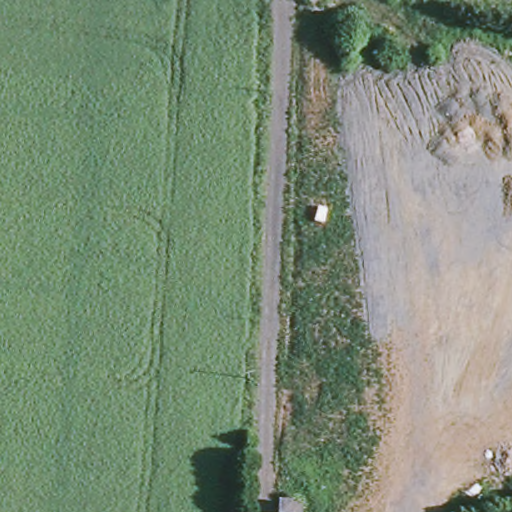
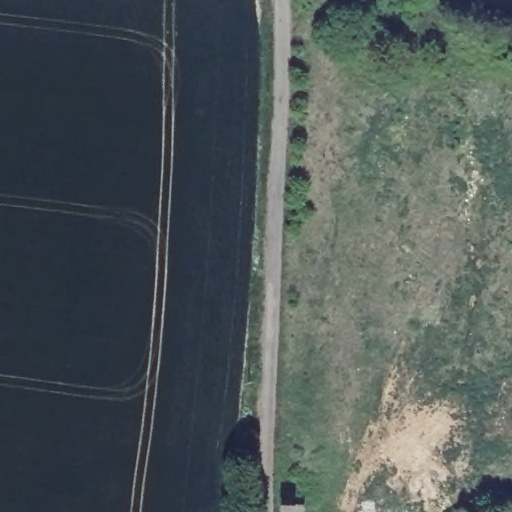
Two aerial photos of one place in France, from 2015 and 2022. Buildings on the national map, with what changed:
unchanged [(277,512),(277,507),(300,508),(299,512),(277,512)]

